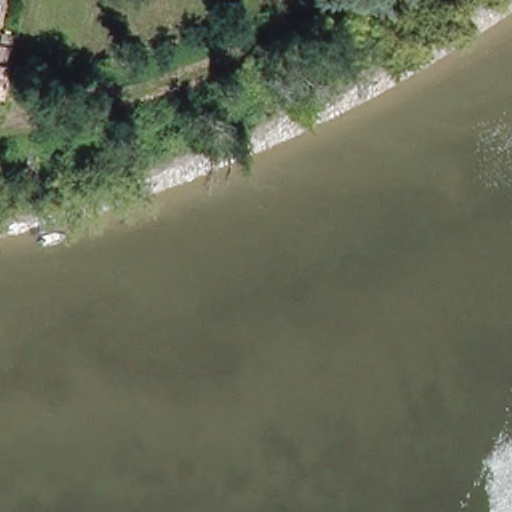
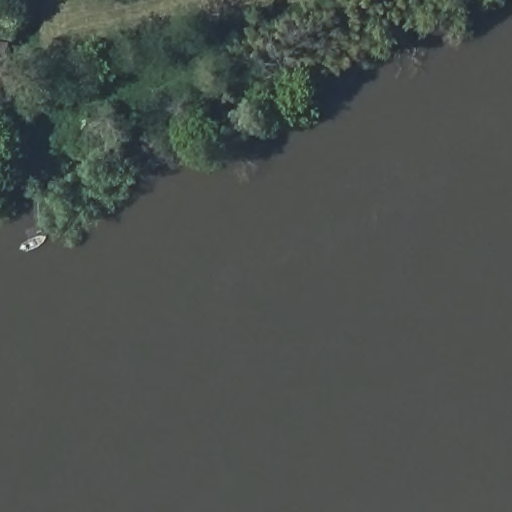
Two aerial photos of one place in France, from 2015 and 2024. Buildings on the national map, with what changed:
unchanged [(0,95),(0,40),(12,43),(2,95),(0,95)]

